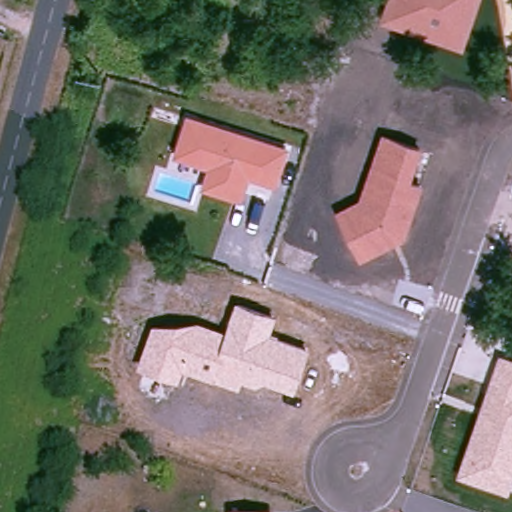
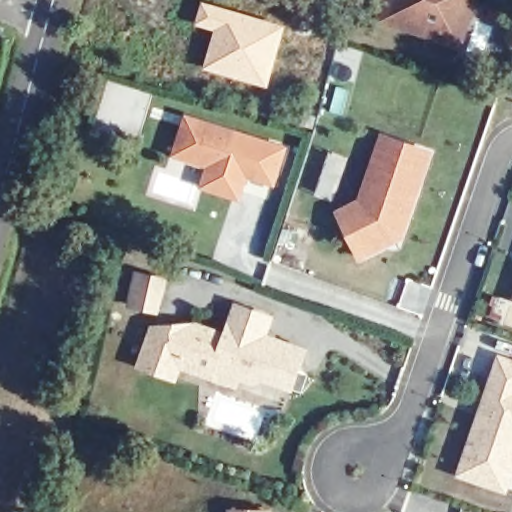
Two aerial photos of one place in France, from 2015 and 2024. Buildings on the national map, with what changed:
new [(200,0),(202,0),(286,26),(268,89),(202,69),(212,32),(193,26),(200,0)]
unchanged [(463,53),(380,24),(388,0),(480,0),(463,53)]
unchanged [(205,166),(172,157),(187,115),(288,147),(277,188),(248,179),(242,203),(199,190),(205,166)]
unchanged [(335,212),(361,198),(382,133),(422,146),(411,183),(422,187),(403,241),(359,262),(335,212)]
new [(135,270),(167,277),(160,314),(127,307),(135,270)]
unchanged [(151,325),(195,321),(225,331),(235,301),(276,314),(270,335),(310,348),(294,391),(262,381),(254,386),(241,381),(237,391),(182,370),(177,381),(136,368),(151,325)]
unchanged [(497,353),(512,358),(512,476),(507,493),(456,477),(497,353)]
unchanged [(272,509),(272,512),(227,512),(227,508),(272,509)]

